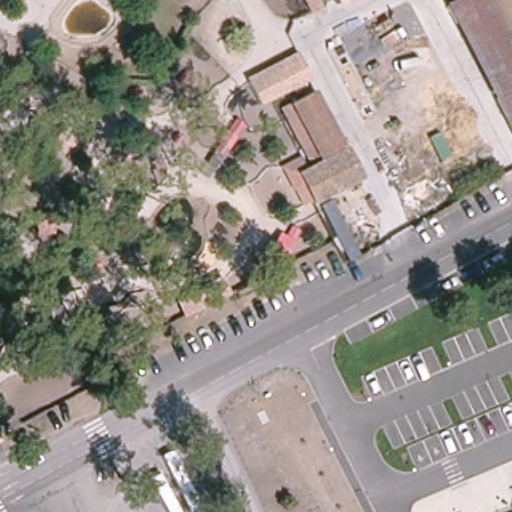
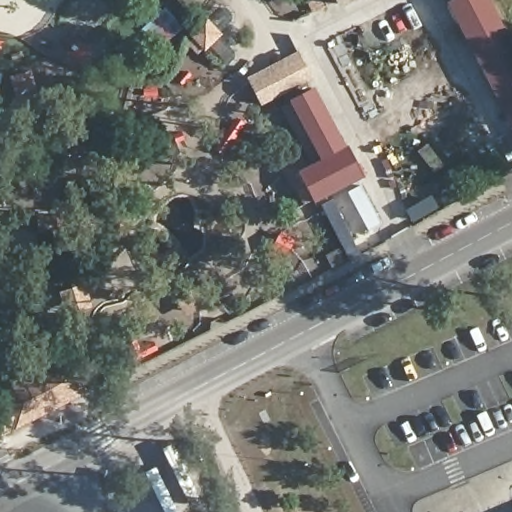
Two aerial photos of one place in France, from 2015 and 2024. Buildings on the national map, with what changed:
unchanged [(336,0),(347,0),(338,5),(336,0)]
unchanged [(448,0),(489,0),(512,44),(512,124),(448,0)]
unchanged [(297,53),(310,79),(261,106),(244,77),(297,53)]
unchanged [(345,146),(362,178),(360,179),(314,203),(301,177),(299,173),(313,165),(282,108),(287,105),(311,93),(316,90),(345,146)]

